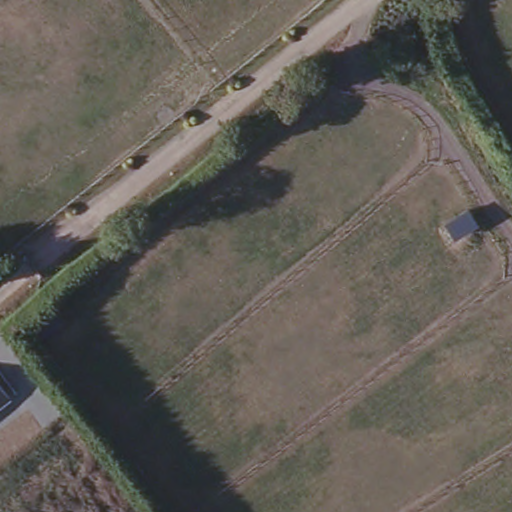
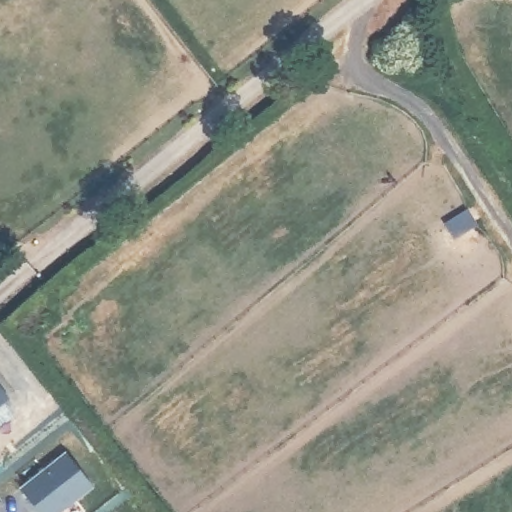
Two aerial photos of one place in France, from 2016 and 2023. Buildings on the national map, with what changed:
unchanged [(469,208),(481,229),(458,242),(445,224),(469,208)]
unchanged [(0,406),(0,381),(12,397),(0,406)]
new [(69,449),(93,482),(52,512),(42,512),(21,486),(69,449)]

